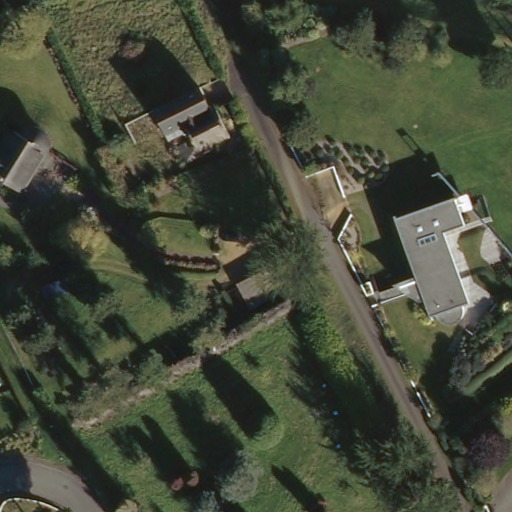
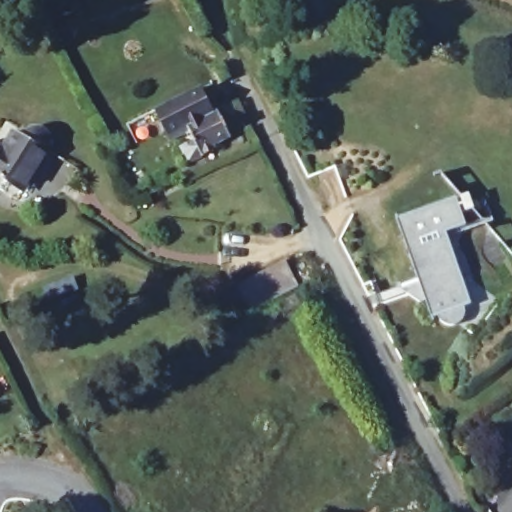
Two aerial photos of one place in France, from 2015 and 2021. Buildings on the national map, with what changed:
unchanged [(227,104),(239,128),(224,135),(226,140),(196,157),(187,140),(197,135),(193,127),(175,136),(166,117),(159,106),(204,84),(210,96),(216,109),(227,104)]
unchanged [(18,154),(32,132),(42,137),(46,129),(60,137),(62,150),(32,192),(0,171),(0,143),(18,154)]
unchanged [(417,288),(412,278),(425,272),(406,217),(459,195),(471,224),(451,231),(476,298),(467,303),(468,308),(468,312),(468,317),(465,320),(462,323),(458,325),(454,326),(451,325),(448,324),(444,322),(442,318),(439,313),(405,327),(389,299),(417,288)]
unchanged [(297,288),(247,315),(235,291),(284,263),(297,288)]

